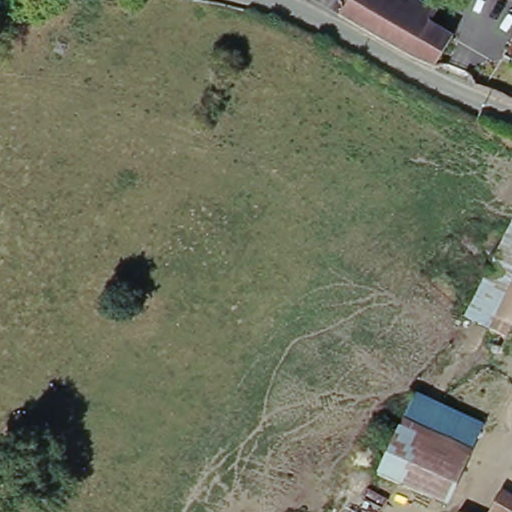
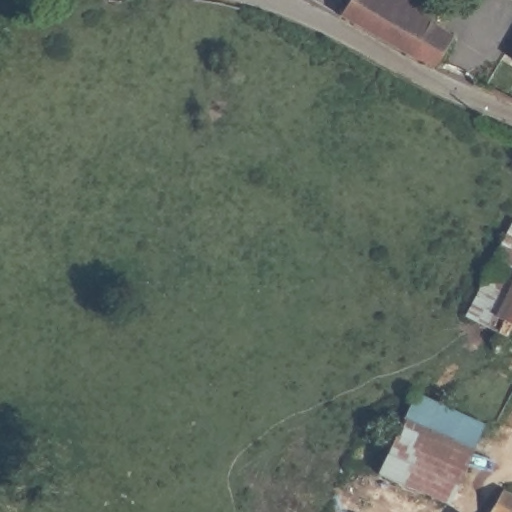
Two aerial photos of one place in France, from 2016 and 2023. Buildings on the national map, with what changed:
unchanged [(436,24),(458,35),(443,64),(389,39),(348,20),(358,0),(418,0),(440,11),(436,24)]
unchanged [(474,324),(512,238),(512,300),(497,335),(474,324)]
unchanged [(497,335),(512,300),(512,342),(503,338),(497,335)]
unchanged [(416,488),(385,475),(416,404),(485,433),(455,504),(416,488)]
unchanged [(501,505),(512,512),(480,512),(489,497),(501,505)]

